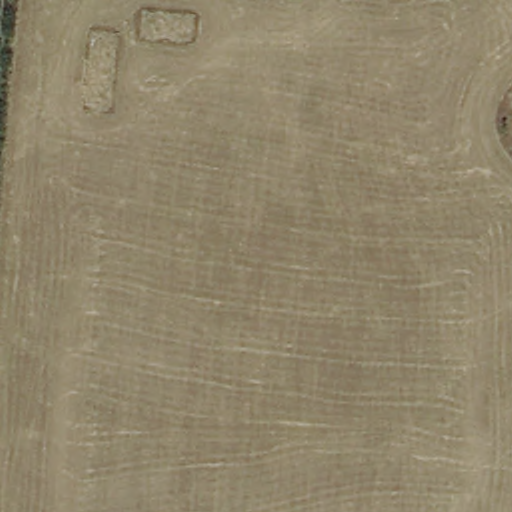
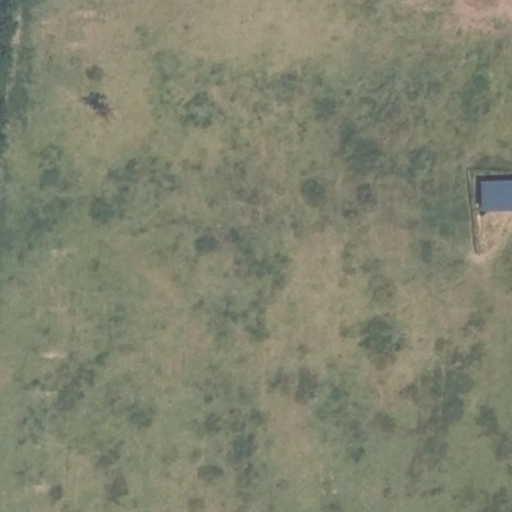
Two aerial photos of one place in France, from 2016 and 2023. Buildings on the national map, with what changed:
new [(512,183),(512,208),(484,209),(484,184),(512,183)]

